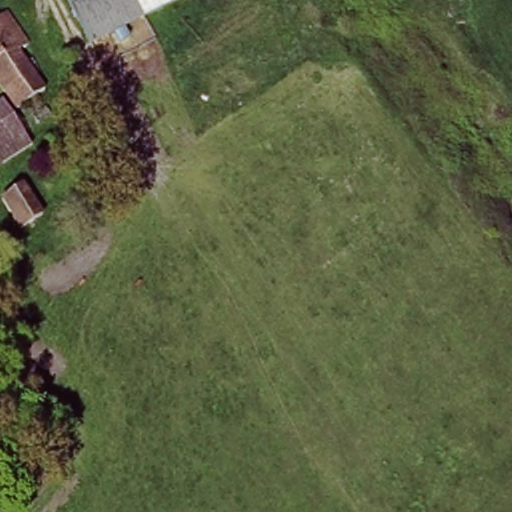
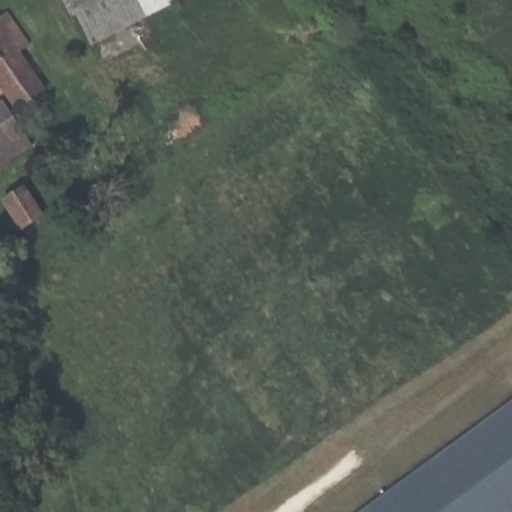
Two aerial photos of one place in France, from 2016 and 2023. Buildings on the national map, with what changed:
unchanged [(68,0),(172,0),(91,44),(68,0)]
unchanged [(5,4),(28,34),(13,49),(45,89),(17,110),(0,87),(0,8),(5,4)]
unchanged [(2,104),(32,145),(0,166),(0,105),(2,104)]
unchanged [(17,191),(37,217),(19,232),(0,207),(0,204),(17,191)]
new [(512,401),(512,512),(359,512),(512,401)]

